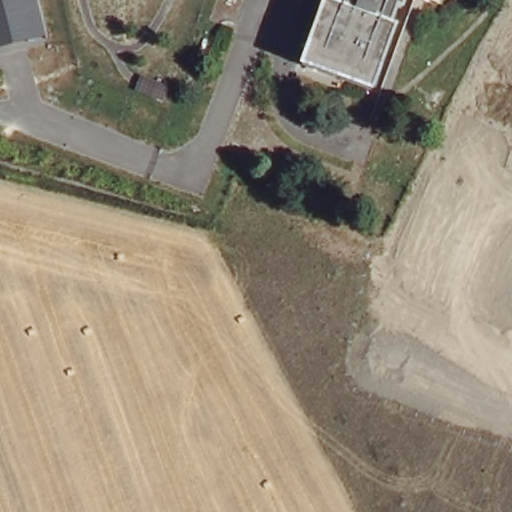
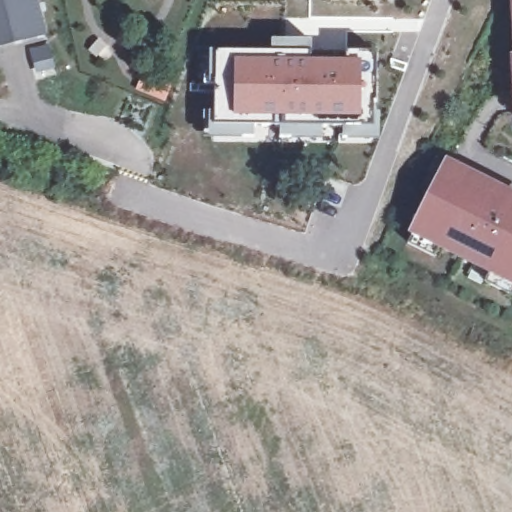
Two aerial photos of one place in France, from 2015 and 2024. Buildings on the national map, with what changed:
unchanged [(52,37),(0,51),(0,0),(41,0),(52,37)]
new [(213,46),(212,54),(267,51),(266,37),(312,38),(312,0),(394,0),(394,52),(375,53),(378,129),(205,137),(205,113),(215,114),(217,90),(200,91),(200,46),(213,46)]
demolished [(375,87),(314,64),(335,3),(328,1),(329,0),(404,0),(375,87)]
new [(487,269),(440,245),(434,257),(407,243),(413,232),(447,165),(495,189),(507,195),(512,198),(512,291),(483,277),(487,269)]

